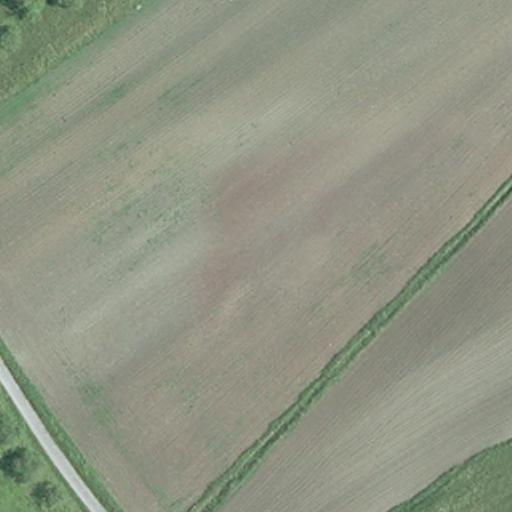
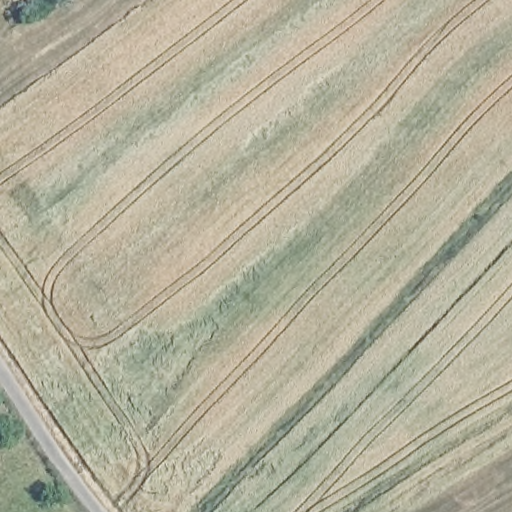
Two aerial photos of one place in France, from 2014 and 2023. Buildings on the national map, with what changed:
[]

